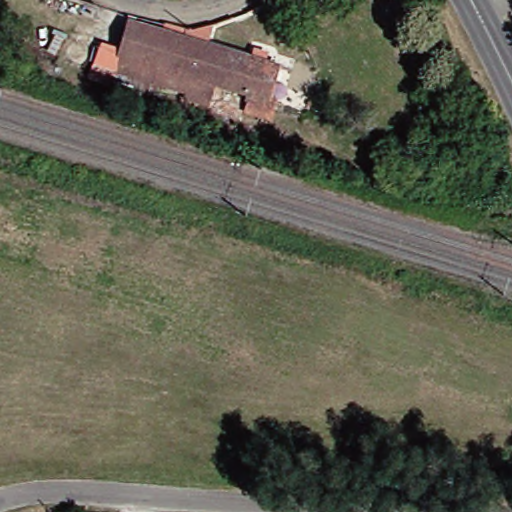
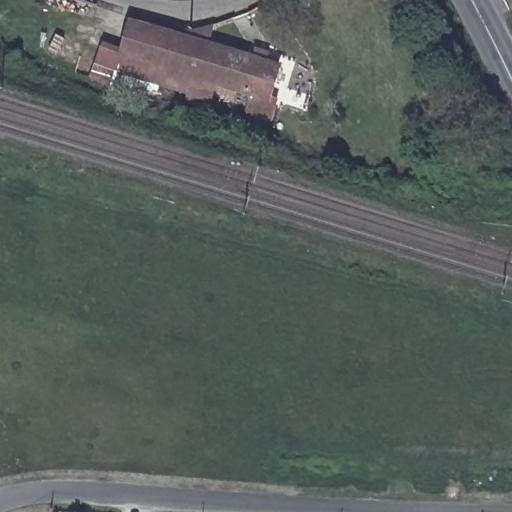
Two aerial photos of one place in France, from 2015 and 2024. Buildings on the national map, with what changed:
unchanged [(285,62),(274,100),(215,86),(206,117),(141,97),(146,73),(120,66),(130,19),(285,62)]

